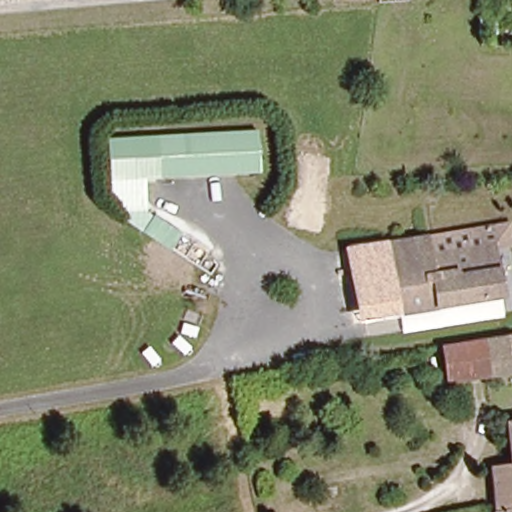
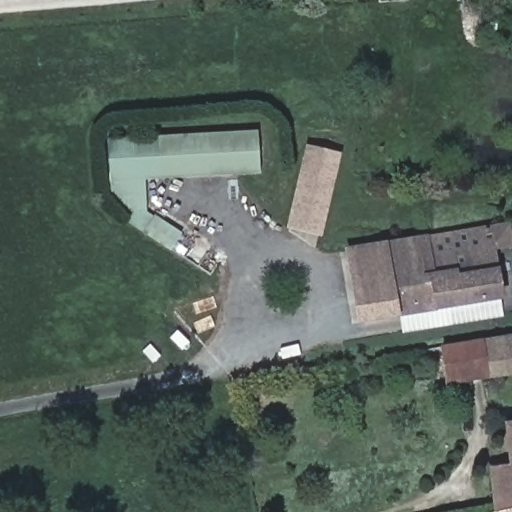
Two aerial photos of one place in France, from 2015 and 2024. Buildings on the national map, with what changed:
unchanged [(507,0),(512,0),(512,24),(507,0)]
unchanged [(259,169),(159,177),(156,136),(256,127),(259,169)]
unchanged [(144,179),(146,211),(180,235),(169,250),(113,212),(109,139),(156,136),(159,177),(144,179)]
new [(321,237),(285,229),(304,145),(341,154),(321,237)]
unchanged [(399,315),(389,245),(427,239),(430,258),(481,251),(479,234),(509,229),(512,248),(493,251),(501,300),(399,315)]
unchanged [(399,315),(357,322),(345,252),(389,245),(399,315)]
unchanged [(512,351),(512,372),(445,381),(441,347),(510,337),(512,351)]
unchanged [(494,512),(491,470),(510,468),(507,430),(512,429),(512,512),(494,512)]

